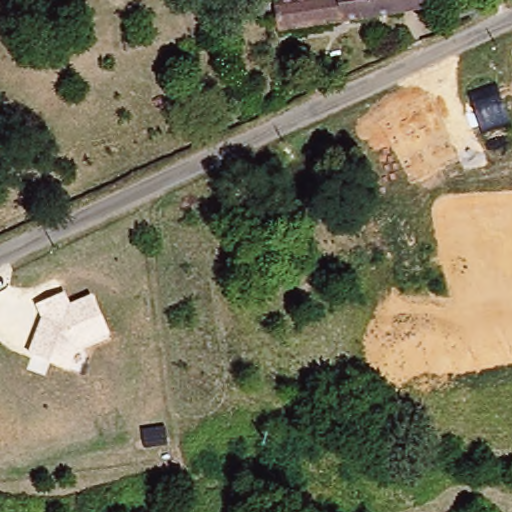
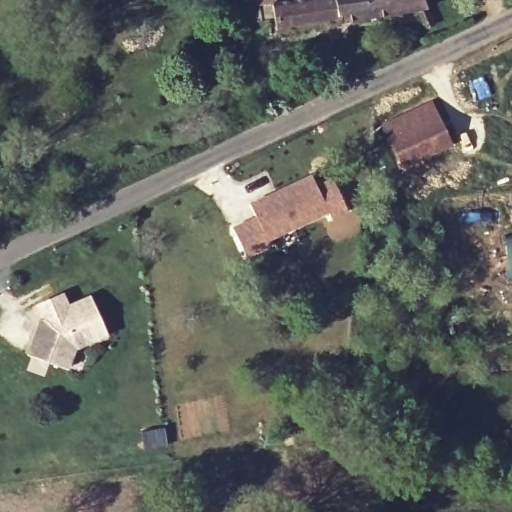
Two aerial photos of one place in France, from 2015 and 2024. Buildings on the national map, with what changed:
unchanged [(285,34),(281,20),(264,21),(262,0),(423,0),(426,13),(285,34)]
unchanged [(248,39),(247,25),(262,24),(263,38),(248,39)]
new [(452,145),(401,169),(381,125),(432,101),(452,145)]
new [(328,212),(267,241),(270,246),(245,258),(230,227),(255,216),(249,204),(311,175),(328,212)]
unchanged [(108,337),(77,350),(69,370),(27,355),(41,319),(34,305),(65,293),(70,305),(90,297),(108,337)]

